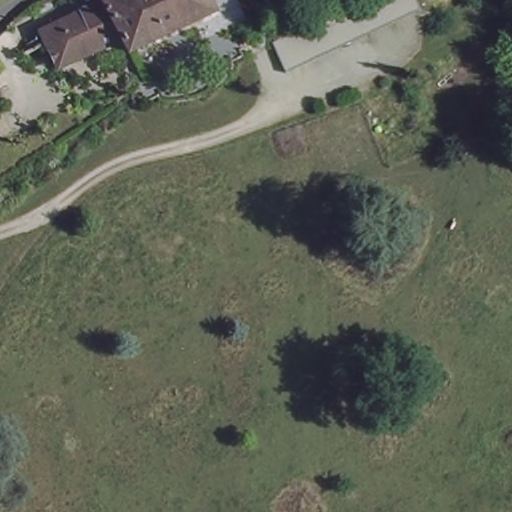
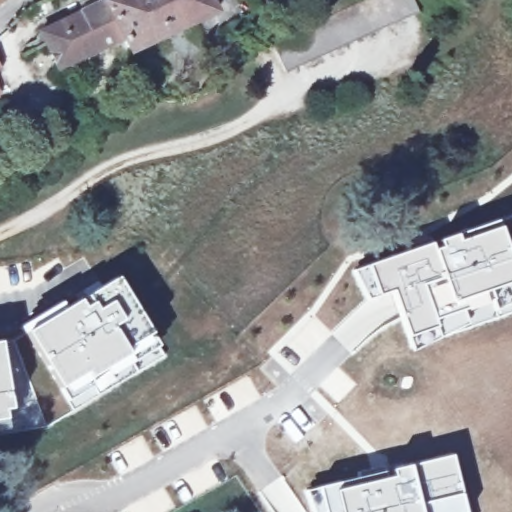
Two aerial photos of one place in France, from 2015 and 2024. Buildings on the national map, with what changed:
unchanged [(48,1),(50,0),(79,0),(53,13),(48,1)]
unchanged [(108,4),(116,0),(209,0),(215,12),(130,52),(108,4)]
unchanged [(415,11),(283,70),(270,42),(362,0),(410,0),(415,11)]
unchanged [(126,54),(120,40),(55,69),(39,36),(108,4),(130,52),(126,54)]
new [(499,218),(505,232),(512,229),(512,312),(436,337),(435,330),(422,335),(424,343),(412,347),(391,292),(368,300),(354,269),(404,250),(499,218)]
new [(61,300),(64,306),(117,275),(153,332),(165,356),(72,412),(19,326),(61,300)]
new [(15,337),(36,398),(34,399),(29,403),(19,412),(13,413),(1,340),(15,337)]
new [(1,340),(13,413),(6,415),(7,425),(0,426),(0,340),(1,340)]
new [(452,453),(466,512),(313,512),(307,489),(387,467),(452,453)]

